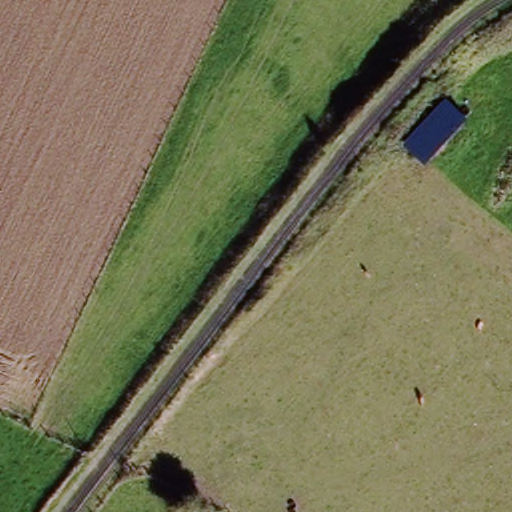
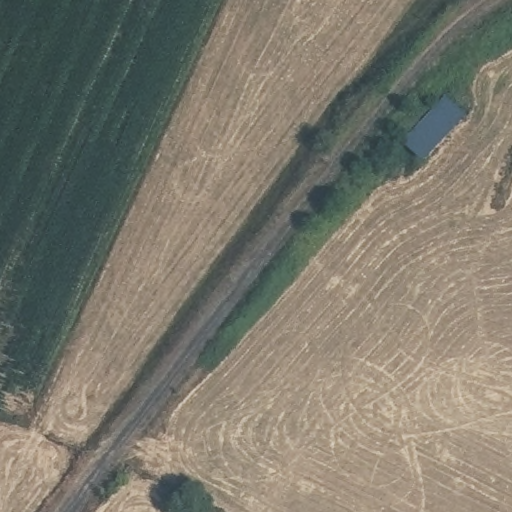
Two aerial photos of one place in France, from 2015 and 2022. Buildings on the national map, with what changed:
unchanged [(423,165),(400,144),(443,97),(466,115),(423,165)]

